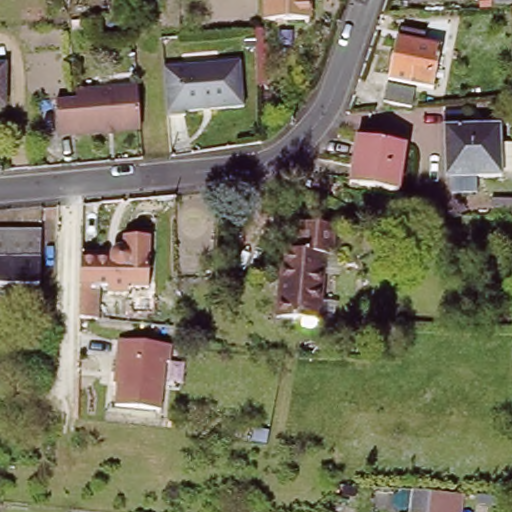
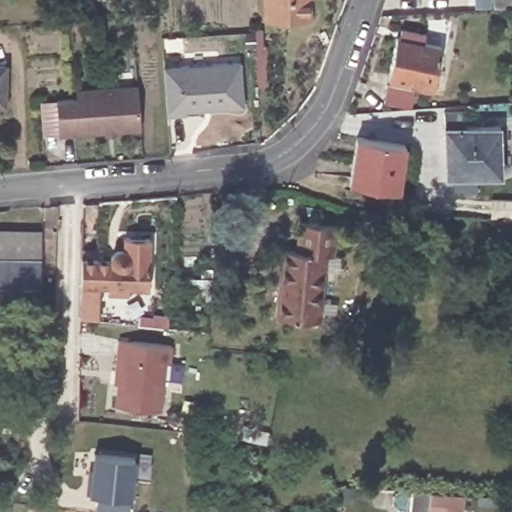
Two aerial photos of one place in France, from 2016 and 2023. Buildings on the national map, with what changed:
unchanged [(307,19),(267,22),(265,0),(306,0),(307,19)]
unchanged [(492,0),(512,0),(512,8),(511,8),(492,10),(492,0)]
unchanged [(441,46),(432,89),(387,79),(396,37),(441,46)]
unchanged [(166,80),(165,65),(240,60),(242,109),(187,112),(187,116),(168,118),(166,80)]
unchanged [(2,107),(0,107),(0,67),(3,67),(2,107)]
unchanged [(62,132),(60,100),(79,99),(79,88),(140,83),(142,125),(62,132)]
unchanged [(410,107),(383,102),(387,86),(414,92),(410,107)]
unchanged [(465,111),(465,126),(500,125),(501,176),(476,177),(477,192),(450,193),(450,177),(445,177),(444,113),(465,111)]
unchanged [(397,192),(349,184),(355,138),(405,145),(397,192)]
unchanged [(497,204),(512,204),(512,222),(497,221),(497,204)]
unchanged [(290,248),(302,249),(307,221),(342,226),(337,253),(331,252),(320,322),(314,321),(317,286),(285,283),(290,248)]
unchanged [(0,231),(40,231),(40,256),(39,284),(0,284),(0,231)]
unchanged [(85,254),(114,254),(114,252),(114,251),(115,249),(115,248),(115,247),(117,245),(119,244),(120,244),(122,244),(124,244),(126,244),(126,234),(152,234),(151,292),(130,292),(130,300),(110,301),(110,292),(84,291),(85,254)]
unchanged [(317,286),(314,321),(280,316),(285,283),(317,286)]
unchanged [(175,344),(174,361),(169,360),(165,411),(122,407),(124,373),(120,373),(122,341),(175,344)]
new [(128,512),(98,512),(94,511),(95,493),(87,493),(92,453),(135,458),(130,497),(128,512)]
unchanged [(465,492),(463,512),(429,512),(429,510),(412,507),(414,485),(465,492)]

